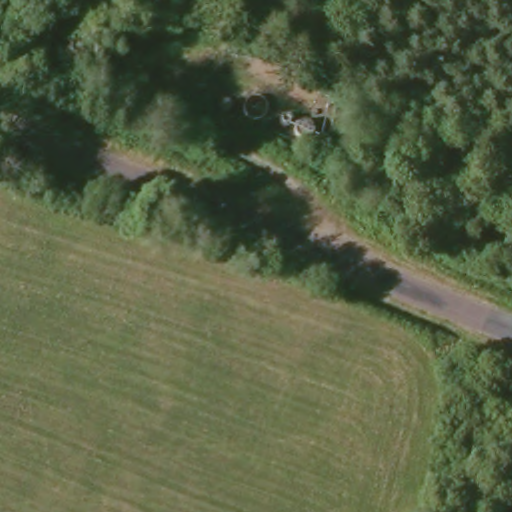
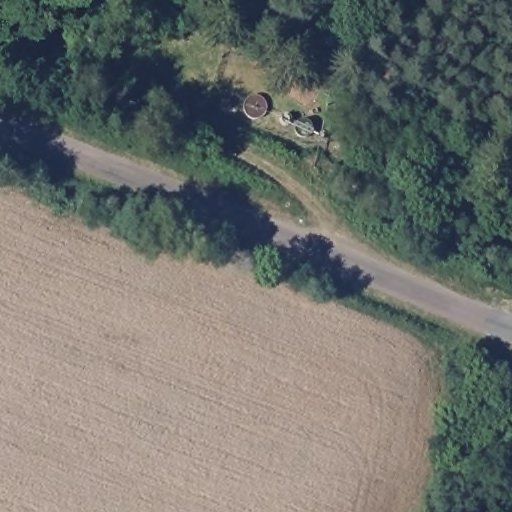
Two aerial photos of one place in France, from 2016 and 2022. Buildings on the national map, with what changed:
[]

